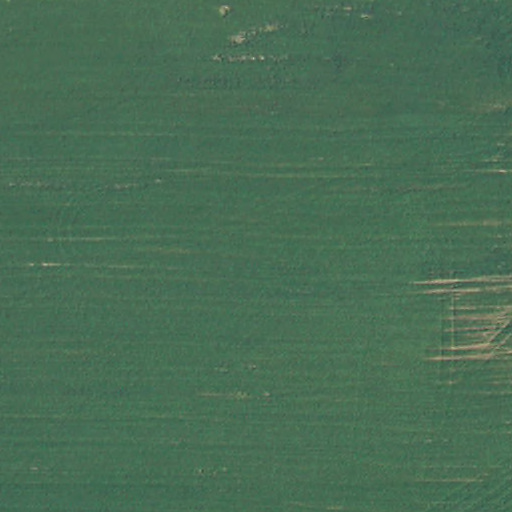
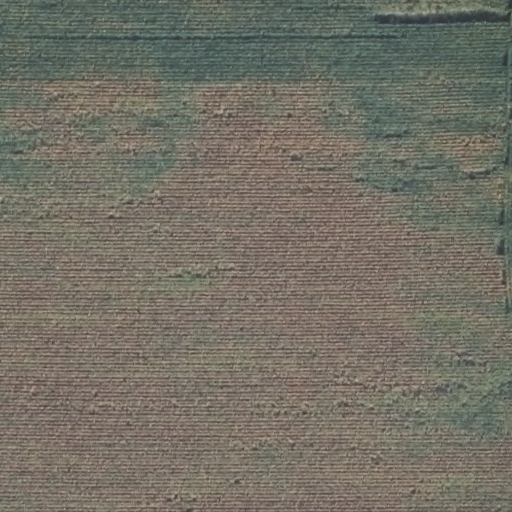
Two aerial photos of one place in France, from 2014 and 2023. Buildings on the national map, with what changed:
[]

